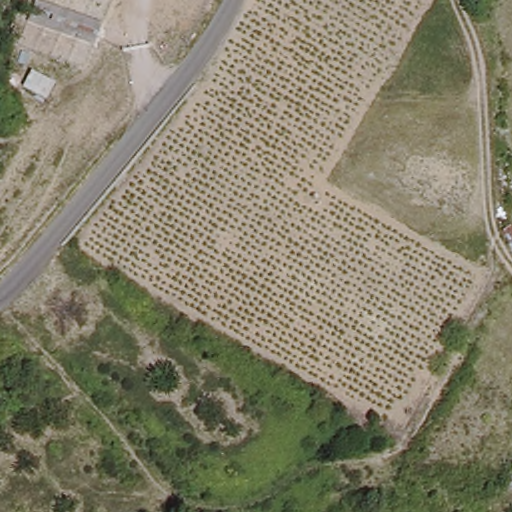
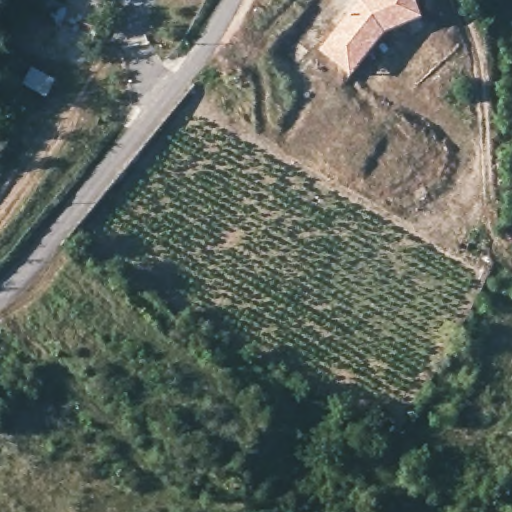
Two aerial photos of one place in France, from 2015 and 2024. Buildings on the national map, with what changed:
new [(386,33),(351,75),(318,53),(361,0),(416,0),(423,17),(386,33)]
unchanged [(512,221),(512,243),(508,245),(503,226),(512,221)]

